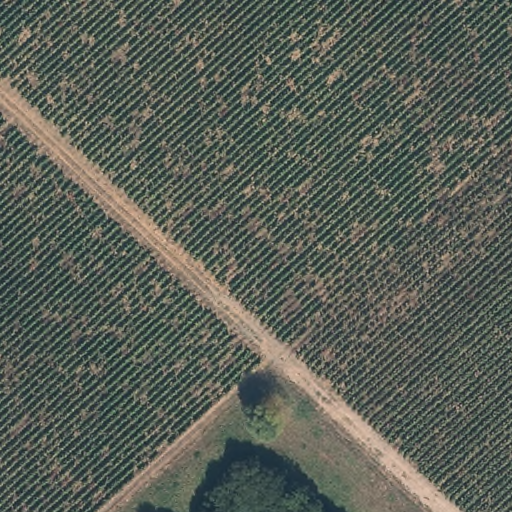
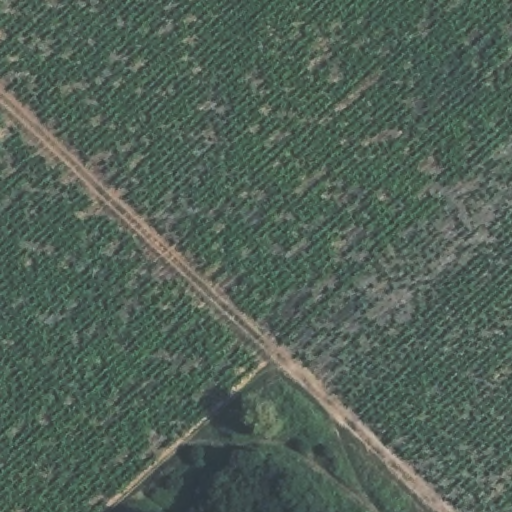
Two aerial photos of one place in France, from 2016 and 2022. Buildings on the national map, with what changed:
[]

